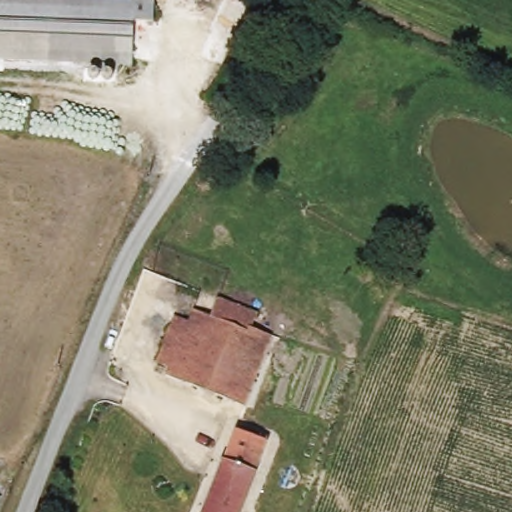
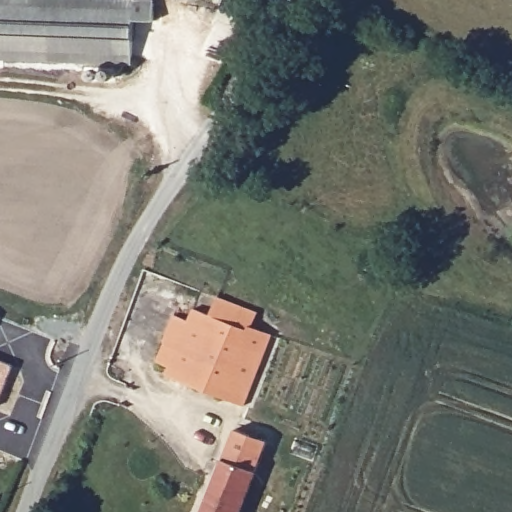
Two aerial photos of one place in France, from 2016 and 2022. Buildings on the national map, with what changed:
unchanged [(132,64),(34,58),(0,56),(0,0),(130,0),(157,2),(156,19),(136,19),(132,64)]
unchanged [(242,409),(164,380),(168,372),(156,366),(178,306),(191,311),(199,294),(259,319),(253,331),(271,339),(242,409)]
new [(14,364),(0,402),(0,359),(14,364)]
unchanged [(205,512),(235,433),(269,449),(245,512),(205,512)]

